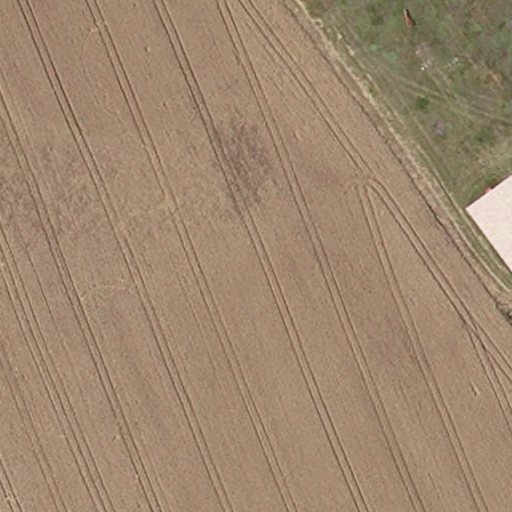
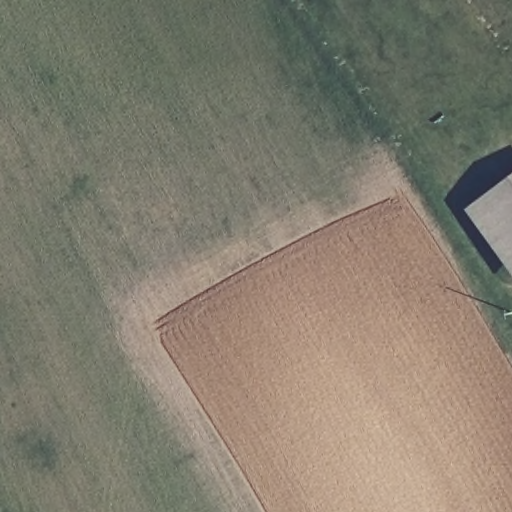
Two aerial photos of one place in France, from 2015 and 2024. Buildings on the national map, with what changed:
unchanged [(512,177),(512,271),(469,209),(512,177)]

